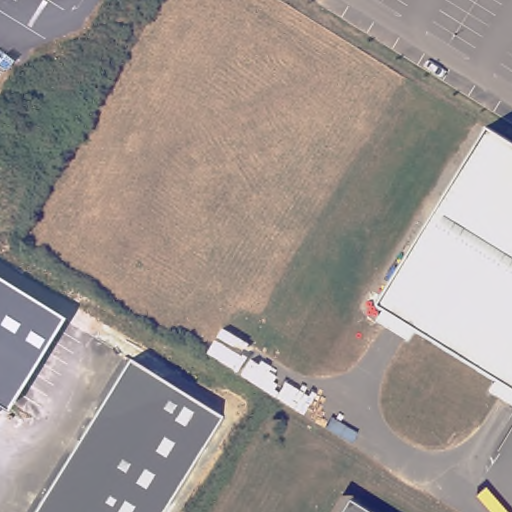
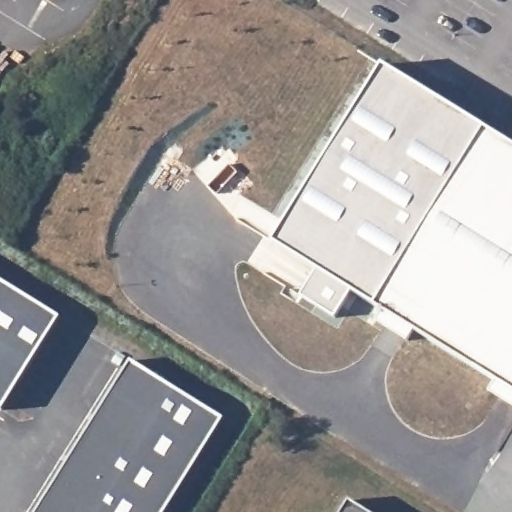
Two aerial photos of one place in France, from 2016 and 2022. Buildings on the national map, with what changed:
new [(372,304),(348,289),(335,317),(299,295),(314,268),(273,241),(382,63),(482,125),(372,304)]
unchanged [(372,304),(482,125),(512,144),(512,391),(372,304)]
unchanged [(0,278),(59,314),(2,408),(0,407),(0,278)]
unchanged [(222,417),(163,512),(35,512),(129,359),(222,417)]
unchanged [(345,498),(368,512),(336,512),(345,498)]

